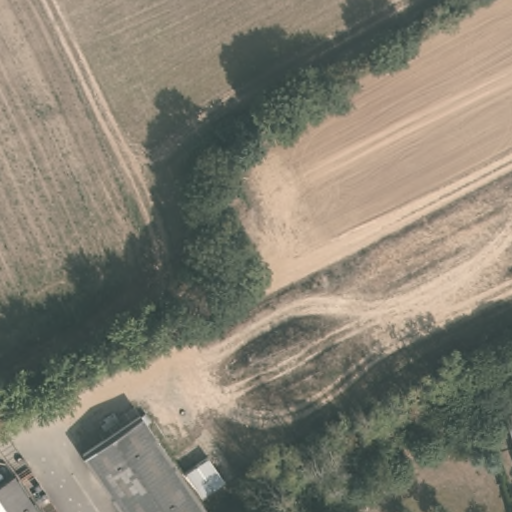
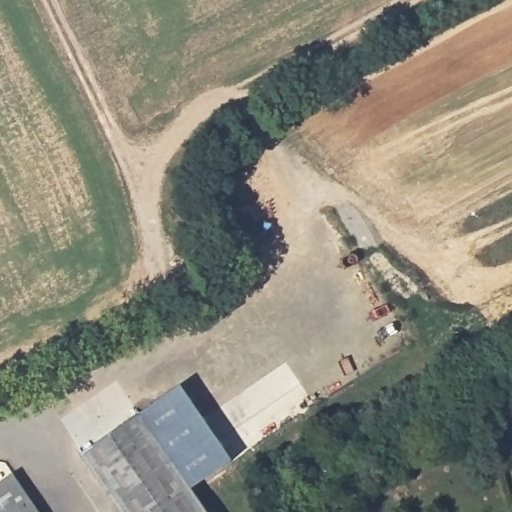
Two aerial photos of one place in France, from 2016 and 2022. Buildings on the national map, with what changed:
new [(232,461),(187,491),(137,415),(182,386),(232,461)]
unchanged [(201,512),(118,512),(78,453),(137,415),(201,512)]
unchanged [(37,512),(0,512),(0,477),(10,470),(37,512)]

